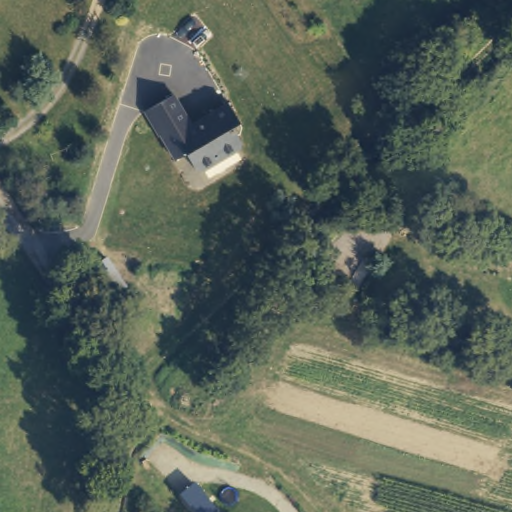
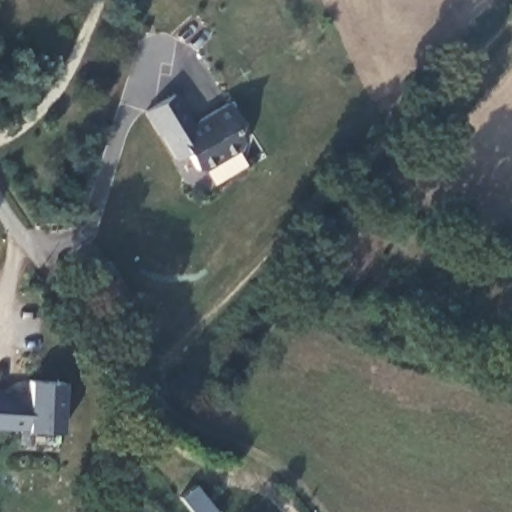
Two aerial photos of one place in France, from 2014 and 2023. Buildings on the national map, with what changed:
unchanged [(242,127),(234,131),(242,147),(241,152),(203,173),(197,172),(189,156),(179,162),(164,134),(162,135),(149,111),(178,96),(196,127),(232,108),(242,127)]
new [(28,392),(28,380),(62,382),(59,432),(26,430),(0,428),(0,390),(28,392)]
new [(194,484),(215,512),(192,512),(180,497),(194,484)]

